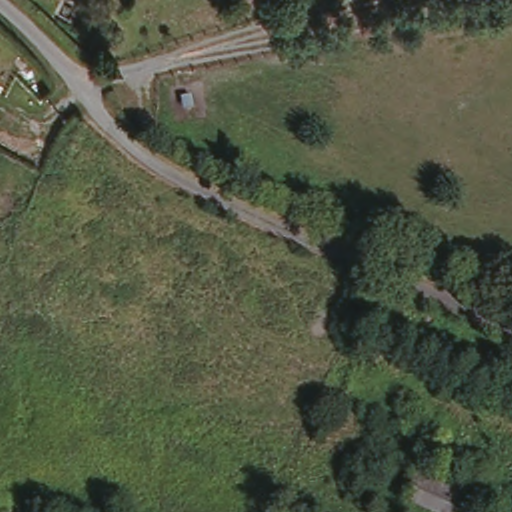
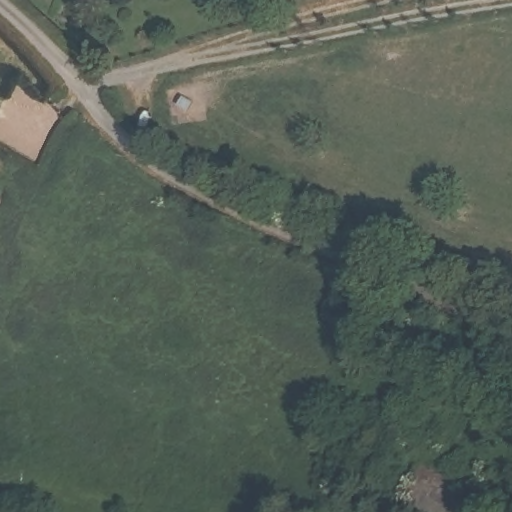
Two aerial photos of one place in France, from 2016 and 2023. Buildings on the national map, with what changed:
unchanged [(457,511),(409,491),(423,460),(473,481),(457,511)]

